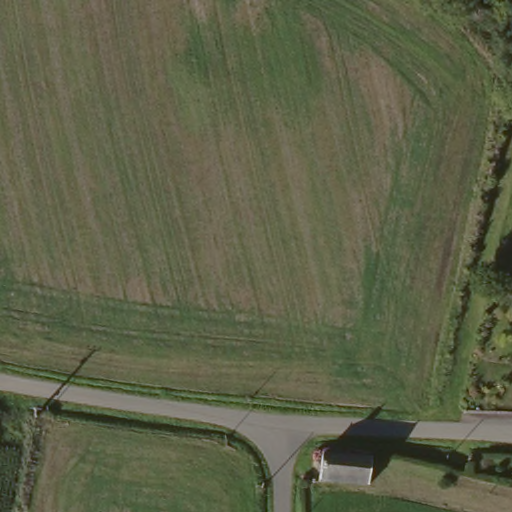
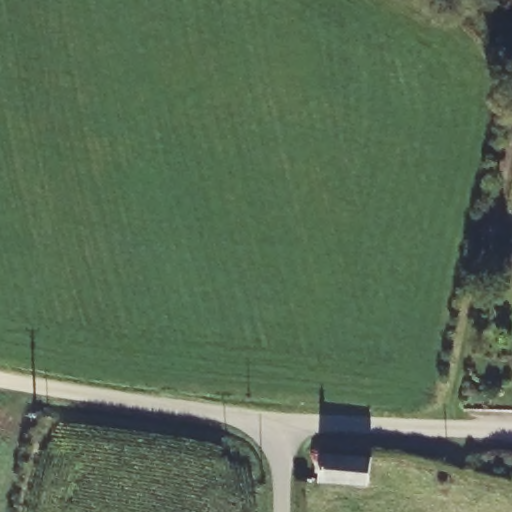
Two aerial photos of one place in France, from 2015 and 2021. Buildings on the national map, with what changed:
unchanged [(323,459),(374,464),(369,496),(318,490),(323,459)]

